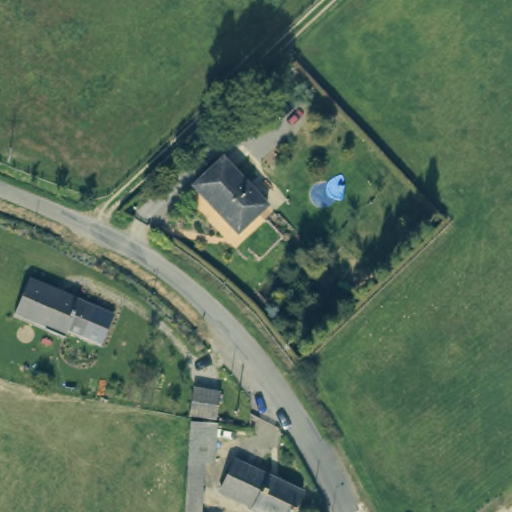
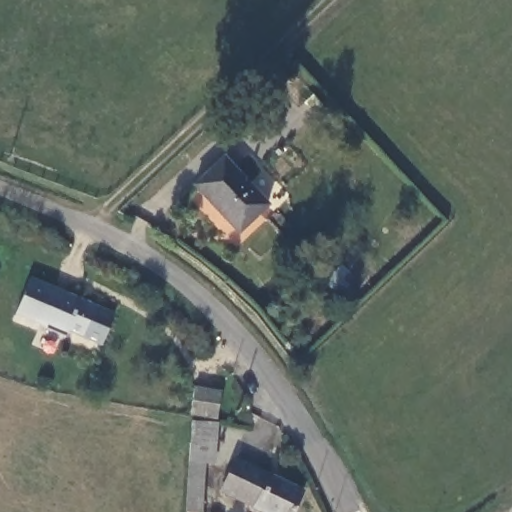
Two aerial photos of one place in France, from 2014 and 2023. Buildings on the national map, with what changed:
unchanged [(235,234),(191,187),(221,160),(264,206),(235,234)]
unchanged [(102,345),(80,335),(66,330),(64,337),(15,317),(30,280),(93,305),(114,312),(102,345)]
unchanged [(217,390),(216,415),(189,414),(190,388),(217,390)]
unchanged [(215,425),(212,464),(205,463),(203,512),(185,511),(189,424),(215,425)]
unchanged [(294,512),(258,512),(250,508),(251,505),(240,500),(222,491),(235,462),(243,465),(301,491),(294,512)]

